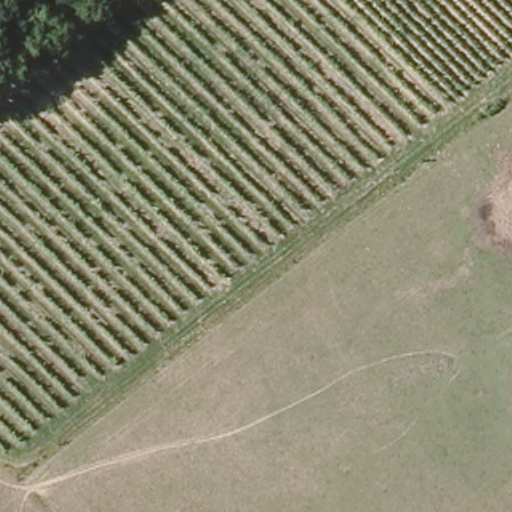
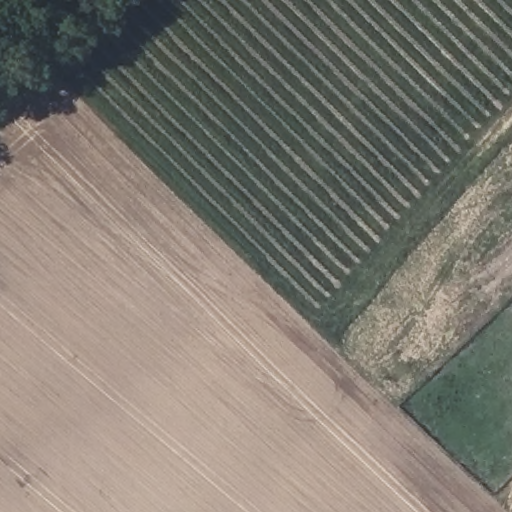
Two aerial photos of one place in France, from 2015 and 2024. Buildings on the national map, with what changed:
[]

